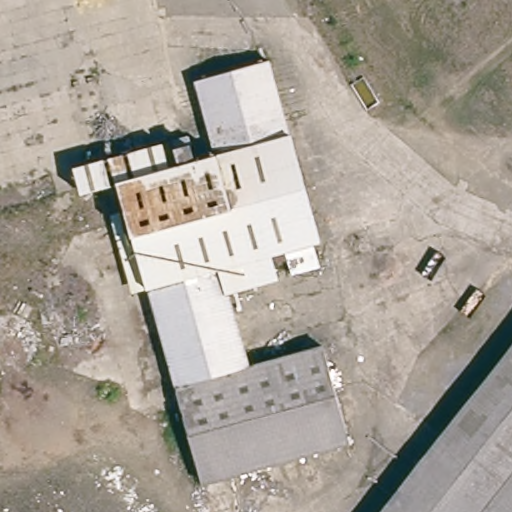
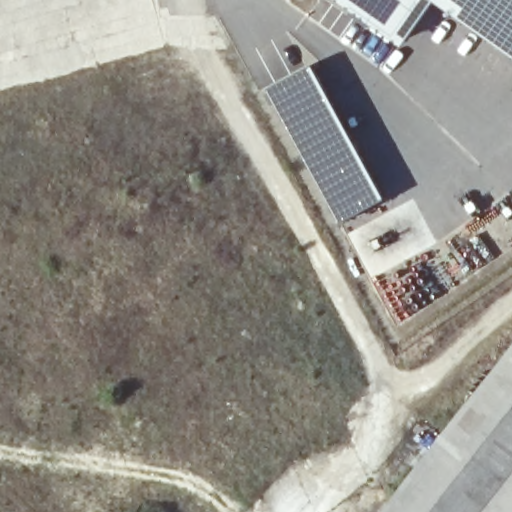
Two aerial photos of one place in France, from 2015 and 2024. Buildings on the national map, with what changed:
new [(435,0),(401,48),(336,0),(512,0),(512,56),(435,0)]
demolished [(172,139),(176,154),(217,144),(197,78),(269,58),(320,237),(282,249),(287,272),(229,289),(250,362),(321,342),(350,443),(203,482),(119,181),(82,191),(74,166),(172,139)]
new [(385,197),(340,223),(266,92),(312,65),(385,197)]
unchanged [(382,512),(512,345),(512,512),(382,512)]

